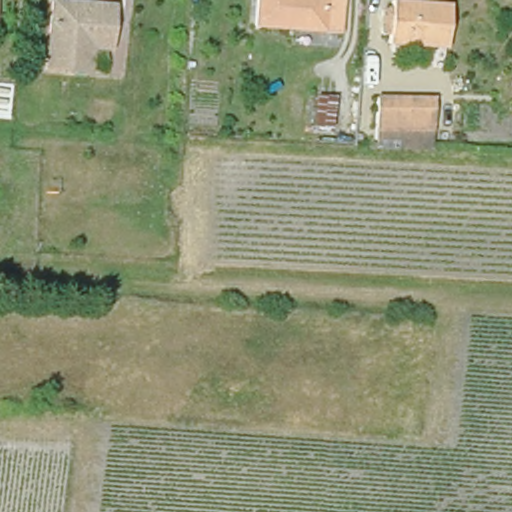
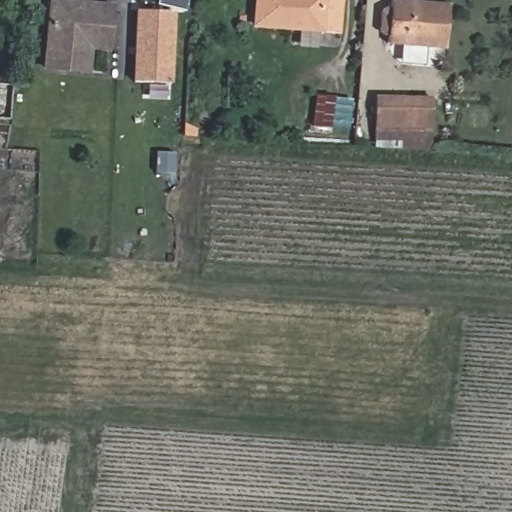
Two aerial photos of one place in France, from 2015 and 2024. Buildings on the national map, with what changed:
unchanged [(259,25),(261,0),(344,0),(340,32),(259,25)]
unchanged [(390,47),(391,43),(387,43),(382,38),(383,15),(389,10),(393,10),(394,3),(451,7),(448,51),(390,47)]
unchanged [(88,52),(86,76),(82,76),(44,72),(50,7),(51,5),(109,12),(109,16),(108,41),(106,54),(88,52)]
new [(136,10),(175,11),(172,83),(134,82),(136,10)]
unchanged [(334,130),(292,123),(295,95),(338,96),(334,130)]
unchanged [(378,130),(381,101),(435,105),(434,135),(378,130)]

